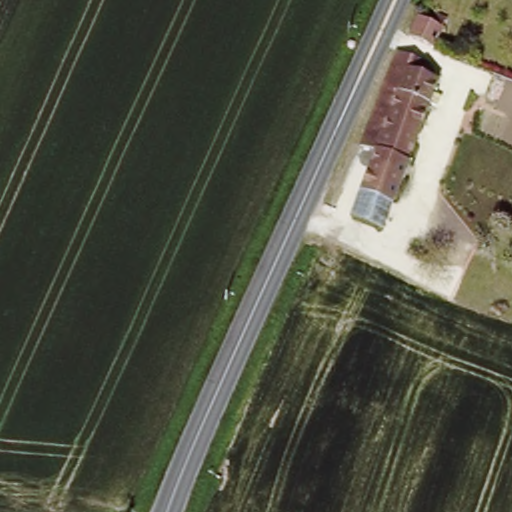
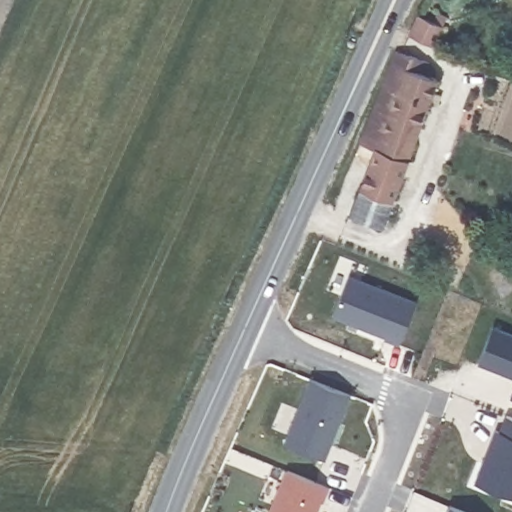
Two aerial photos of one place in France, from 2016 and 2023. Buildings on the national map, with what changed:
unchanged [(432,21),(437,14),(447,18),(433,49),(410,39),(422,18),(432,21)]
unchanged [(418,78),(415,90),(428,95),(382,217),(350,206),(363,167),(353,165),(393,70),(418,78)]
new [(493,328),(512,336),(512,376),(480,363),(493,328)]
new [(325,460),(282,443),(310,378),(351,397),(325,460)]
new [(512,394),(512,400),(510,399),(512,394)]
new [(496,428),(500,431),(507,415),(512,417),(512,498),(474,484),(496,428)]
new [(323,502),(320,502),(316,512),(268,512),(286,470),(329,487),(323,502)]
new [(448,506),(464,512),(445,512),(448,506)]

